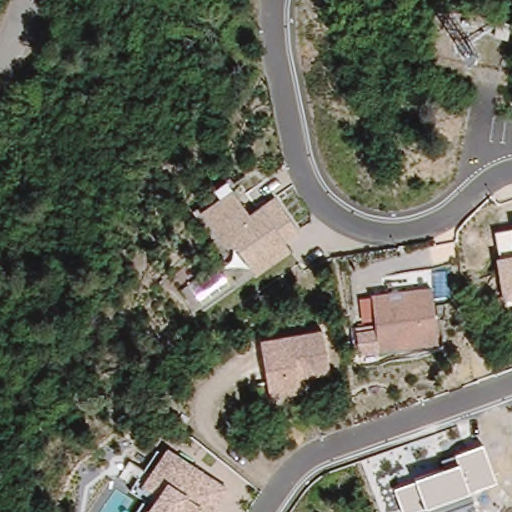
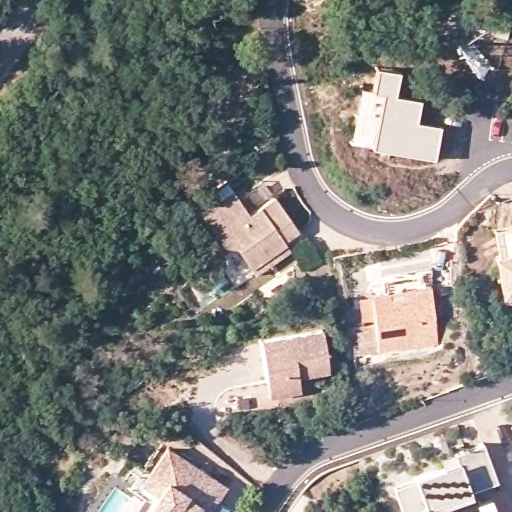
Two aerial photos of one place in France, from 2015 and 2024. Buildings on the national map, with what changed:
new [(360,87),(369,89),(374,65),(399,69),(395,92),(420,98),(417,119),(440,125),(434,159),(349,142),(360,87)]
unchanged [(250,210),(279,194),(295,222),(286,228),(295,244),(262,269),(245,248),(235,255),(201,210),(234,189),(250,210)]
unchanged [(499,254),(512,251),(512,293),(507,294),(499,254)]
unchanged [(440,344),(382,349),(375,292),(434,286),(440,344)]
unchanged [(329,326),(335,377),(305,380),(306,393),(271,397),(263,337),(329,326)]
unchanged [(462,488),(465,496),(419,512),(418,512),(415,504),(396,511),(386,483),(407,474),(438,462),(435,455),(475,439),(489,477),(462,488)]
unchanged [(202,512),(148,512),(160,494),(144,483),(172,443),(227,477),(202,512)]
new [(488,512),(473,512),(468,498),(482,493),(488,512)]

